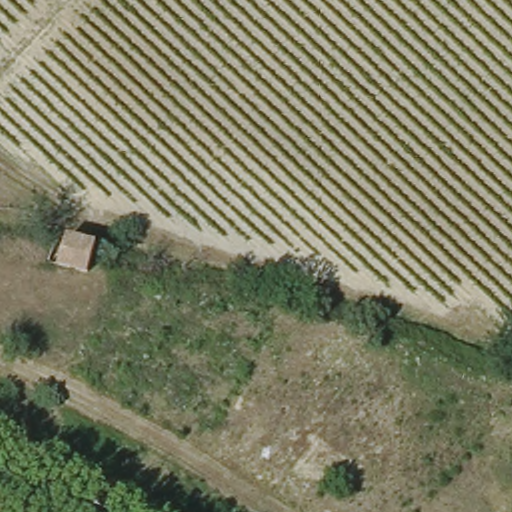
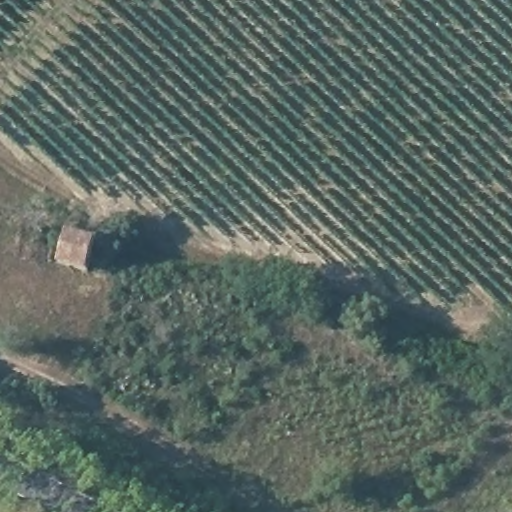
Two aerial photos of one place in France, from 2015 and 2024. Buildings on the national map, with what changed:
unchanged [(64,232),(106,238),(101,271),(60,263),(64,232)]

